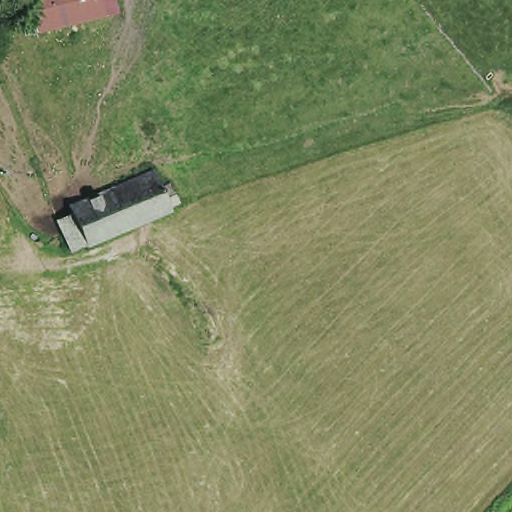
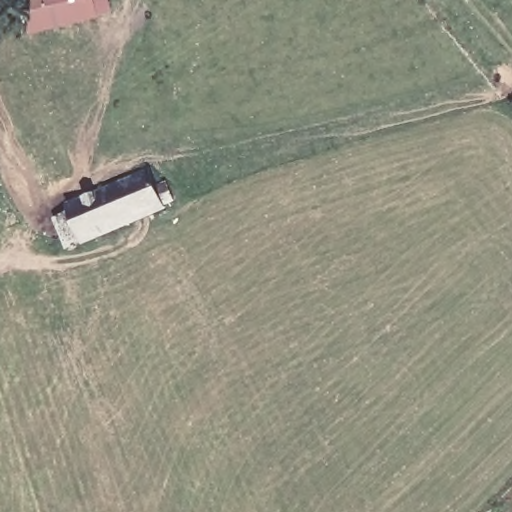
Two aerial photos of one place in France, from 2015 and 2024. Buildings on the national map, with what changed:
unchanged [(17,0),(95,0),(101,21),(23,41),(17,0)]
unchanged [(60,224),(140,180),(159,218),(76,257),(60,224)]

